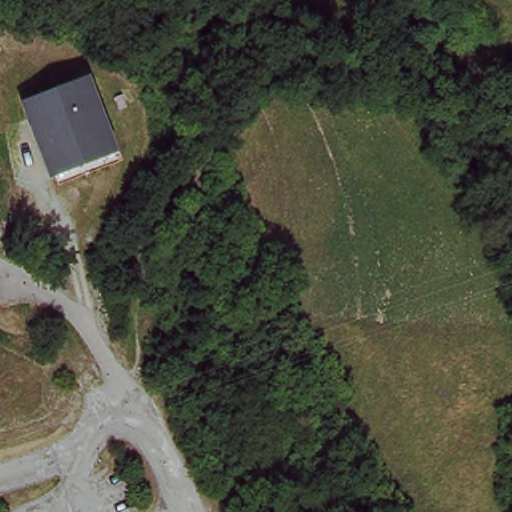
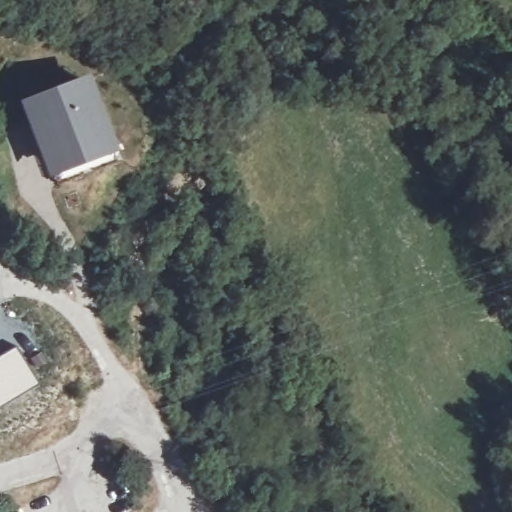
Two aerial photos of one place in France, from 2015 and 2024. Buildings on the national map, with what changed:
unchanged [(91,77),(109,119),(117,138),(105,148),(81,158),(78,151),(58,160),(57,160),(32,103),(91,77)]
unchanged [(109,119),(112,118),(127,153),(67,180),(58,160),(78,151),(81,158),(105,148),(117,138),(109,119)]
new [(15,348),(37,383),(0,405),(0,357),(15,348)]

